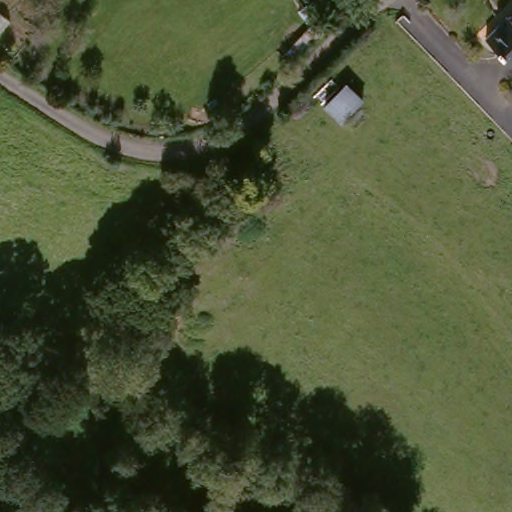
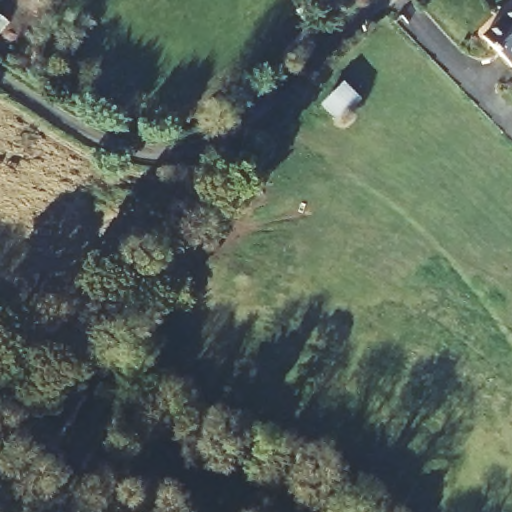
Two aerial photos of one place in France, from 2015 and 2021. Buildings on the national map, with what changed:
unchanged [(502,37),(512,29),(512,48),(502,37)]
unchanged [(363,106),(343,127),(323,107),(344,86),(363,106)]

